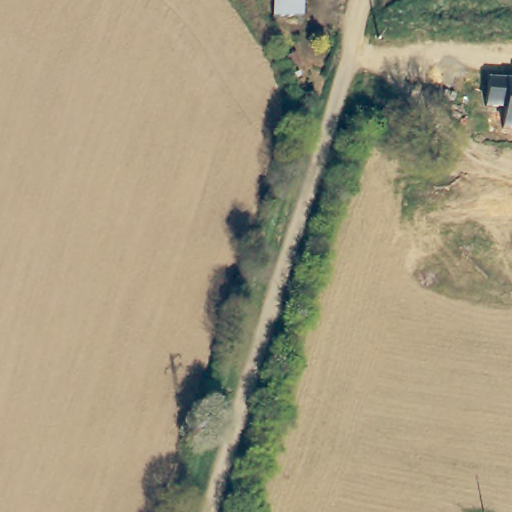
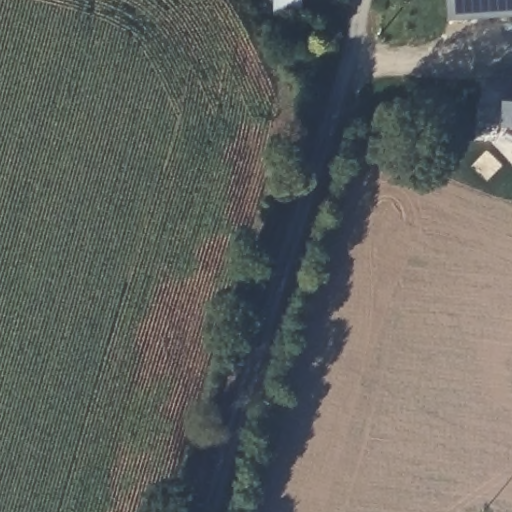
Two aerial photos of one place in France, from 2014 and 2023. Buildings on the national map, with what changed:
unchanged [(306,13),(278,14),(277,0),(305,0),(306,13)]
new [(512,18),(448,22),(447,0),(512,0),(512,18)]
unchanged [(505,109),(486,108),(488,79),(512,80),(512,129),(504,128),(505,109)]

